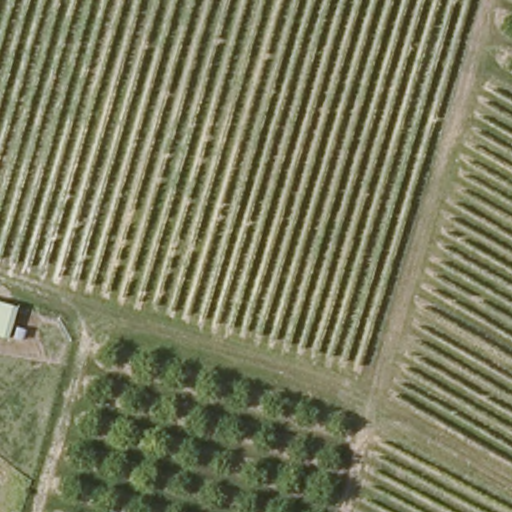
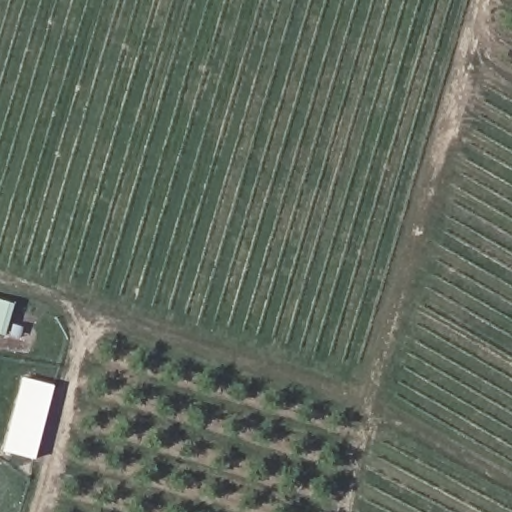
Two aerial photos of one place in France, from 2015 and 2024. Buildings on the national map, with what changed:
unchanged [(11,303),(1,335),(0,334),(0,300),(11,303)]
new [(22,378),(52,386),(34,460),(4,452),(22,378)]

